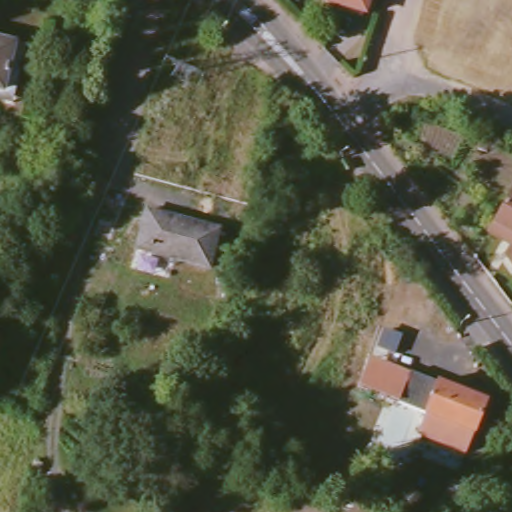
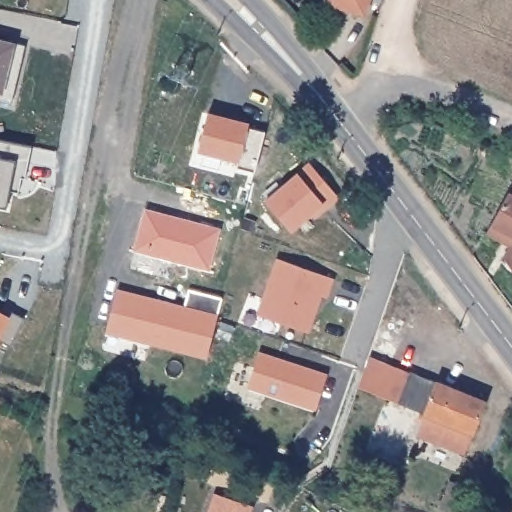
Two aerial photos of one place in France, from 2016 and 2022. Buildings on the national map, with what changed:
unchanged [(326,2),(327,0),(368,0),(364,13),(326,2)]
unchanged [(0,45),(18,50),(9,91),(0,89),(0,45)]
new [(247,126),(265,131),(255,169),(237,163),(199,153),(209,113),(249,121),(247,126)]
new [(22,175),(20,191),(9,189),(6,206),(0,205),(0,141),(32,148),(26,177),(22,175)]
new [(317,218),(312,214),(291,231),(265,199),(297,172),(309,163),(340,199),(317,218)]
unchanged [(505,238),(504,241),(489,233),(512,191),(512,241),(505,238)]
unchanged [(137,247),(147,210),(220,231),(209,268),(137,247)]
unchanged [(510,268),(507,256),(512,247),(512,269),(510,268)]
new [(334,279),(327,298),(322,296),(310,334),(256,314),(277,259),(334,279)]
new [(207,357),(107,331),(117,292),(184,310),(189,291),(222,300),(207,357)]
new [(12,313),(24,319),(10,344),(0,338),(0,311),(10,317),(12,313)]
new [(327,374),(316,410),(248,387),(259,352),(327,374)]
unchanged [(401,401),(358,382),(370,355),(412,372),(401,401)]
unchanged [(400,405),(412,372),(484,401),(470,434),(400,405)]
demolished [(270,423),(227,409),(235,388),(279,399),(270,423)]
unchanged [(462,452),(417,433),(424,415),(470,434),(462,452)]
unchanged [(458,471),(470,476),(455,512),(446,512),(442,511),(458,471)]
new [(208,512),(214,493),(254,507),(252,512),(208,512)]

